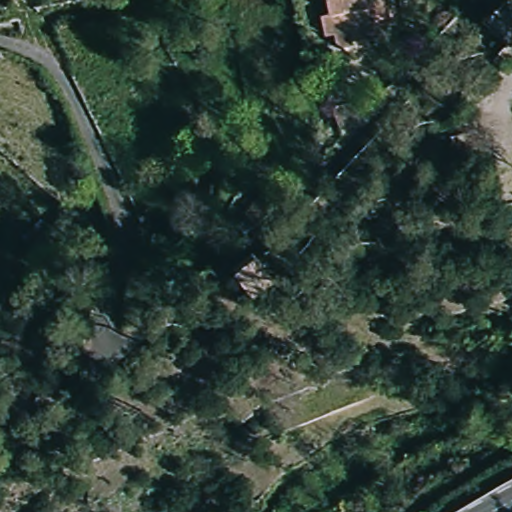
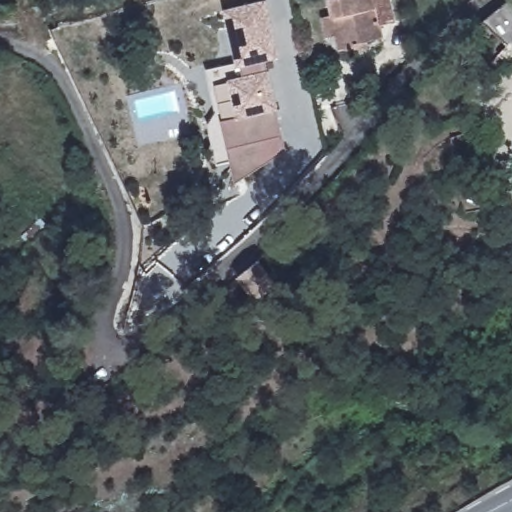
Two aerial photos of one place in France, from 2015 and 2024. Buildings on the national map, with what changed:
new [(280,58),(268,61),(287,150),(236,184),(222,122),(237,119),(228,80),(244,76),(242,66),(236,67),(224,10),(268,0),(280,58)]
unchanged [(330,18),(324,3),(331,0),(384,0),(391,19),(379,25),(383,34),(344,51),(338,36),(329,40),(322,22),(330,18)]
demolished [(261,194),(275,207),(249,234),(234,217),(261,194)]
unchanged [(269,283),(252,301),(249,299),(231,281),(248,263),(269,283)]

